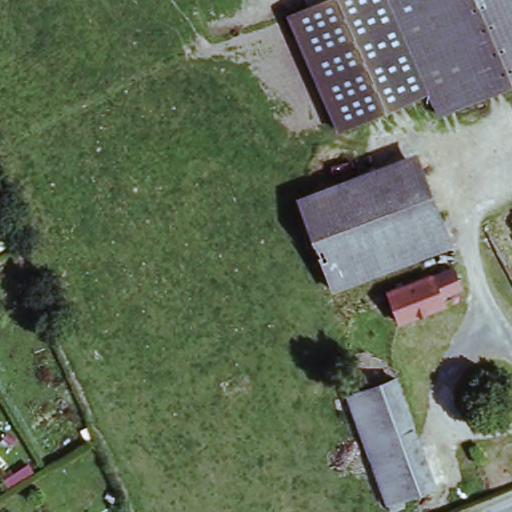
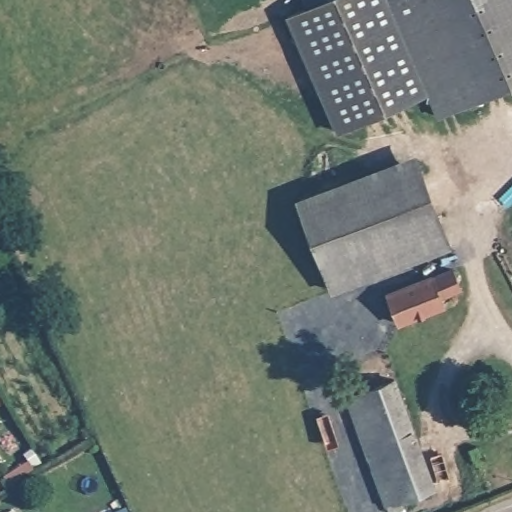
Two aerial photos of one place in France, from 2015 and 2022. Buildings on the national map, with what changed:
unchanged [(386,0),(423,86),(346,120),(302,20),(348,0),(386,0)]
unchanged [(435,111),(423,86),(386,0),(512,0),(512,77),(435,111)]
unchanged [(417,157),(445,233),(328,277),(300,202),(417,157)]
unchanged [(383,297),(435,276),(446,304),(395,325),(383,297)]
unchanged [(392,376),(433,485),(400,497),(403,504),(389,509),(346,393),(392,376)]

